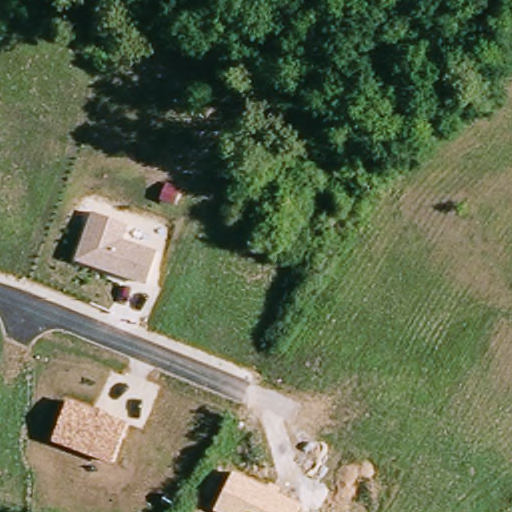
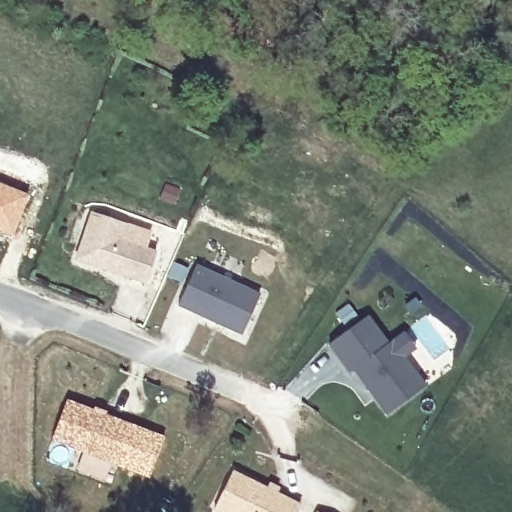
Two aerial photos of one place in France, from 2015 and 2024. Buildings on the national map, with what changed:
new [(12,235),(0,230),(0,182),(30,194),(12,235)]
unchanged [(92,209),(129,221),(125,237),(160,249),(149,282),(76,259),(92,209)]
new [(200,267),(263,298),(244,336),(181,305),(200,267)]
new [(357,369),(353,373),(332,344),(369,315),(391,344),(395,341),(407,332),(418,347),(406,356),(428,386),(390,414),(377,397),(370,388),(357,369)]
unchanged [(52,441),(67,399),(91,408),(93,403),(111,409),(109,414),(129,421),(114,464),(52,441)]
unchanged [(300,503),(295,512),(217,512),(215,511),(234,472),(300,503)]

